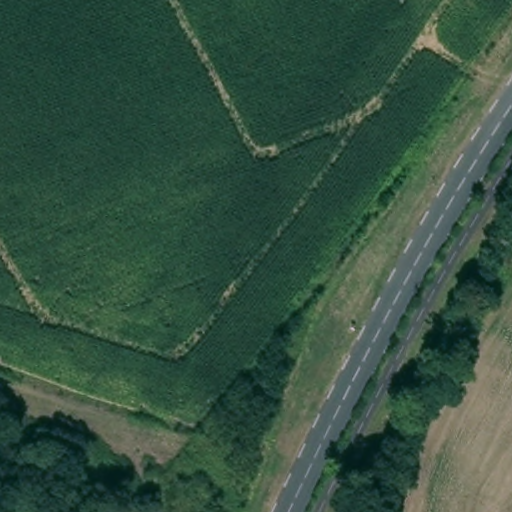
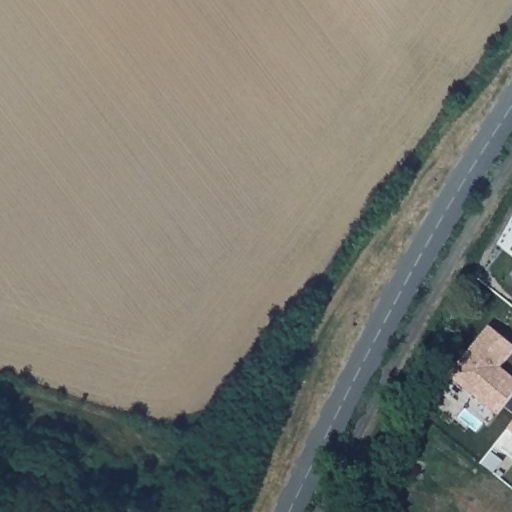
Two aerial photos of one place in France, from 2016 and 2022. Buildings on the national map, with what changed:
new [(512,374),(512,393),(498,412),(450,375),(490,324),(512,342),(512,352),(503,366),(512,374)]
new [(512,425),(512,429),(510,427),(512,425)]

